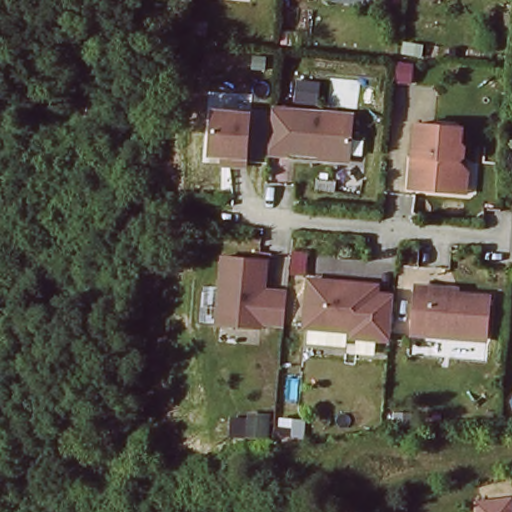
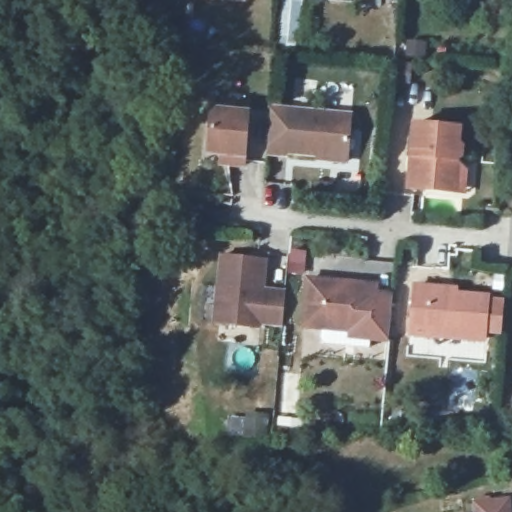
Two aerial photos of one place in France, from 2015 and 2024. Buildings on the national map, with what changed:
unchanged [(313,146),(313,142),(282,139),(282,141),(263,140),(267,96),(347,104),(343,145),(343,149),(313,146)]
unchanged [(215,145),(201,144),(205,102),(242,106),(238,156),(221,155),(214,154),(215,145)]
unchanged [(457,186),(447,185),(402,181),(409,116),(454,120),(452,135),(456,140),(455,150),(450,154),(449,163),(459,164),(457,186)]
unchanged [(259,249),(255,280),(259,285),(264,281),(279,282),(277,299),(275,313),(251,310),(250,316),(209,311),(217,244),(259,249)]
unchanged [(342,319),(295,315),(300,268),(350,273),(368,275),(367,284),(384,286),(384,289),(380,329),(361,328),(341,325),(342,319)]
unchanged [(423,278),(423,283),(480,287),(476,330),(403,323),(408,276),(423,278)]

